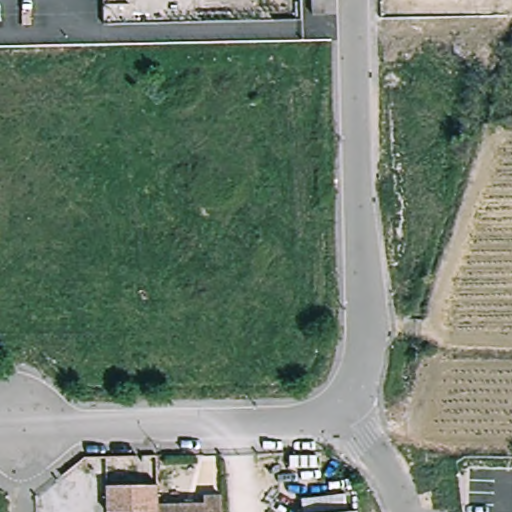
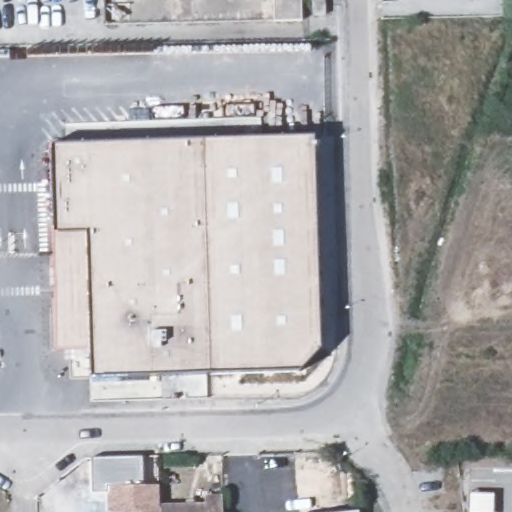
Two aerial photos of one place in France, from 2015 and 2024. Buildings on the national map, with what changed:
unchanged [(310,0),(324,0),(324,17),(311,18),(310,0)]
new [(299,370),(208,373),(202,141),(312,137),(319,350),(299,370)]
new [(208,373),(90,378),(90,348),(57,351),(53,231),(51,145),(202,141),(208,373)]
unchanged [(130,512),(130,507),(118,507),(110,507),(110,477),(163,477),(163,503),(162,512),(130,512)]
unchanged [(207,495),(229,495),(229,512),(162,512),(163,503),(207,504),(207,495)]
unchanged [(130,512),(118,512),(118,507),(130,507),(130,512)]
unchanged [(361,512),(327,512),(361,509),(361,512)]

